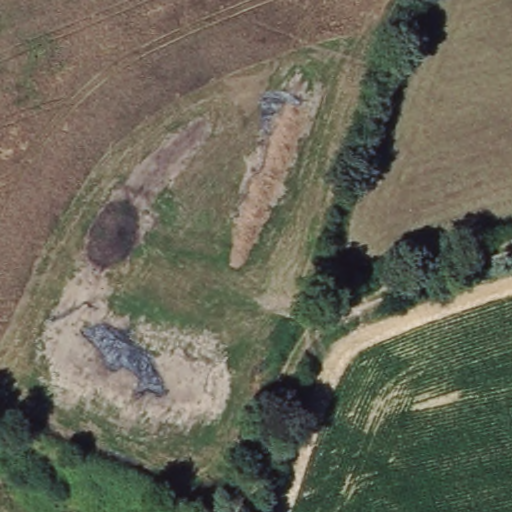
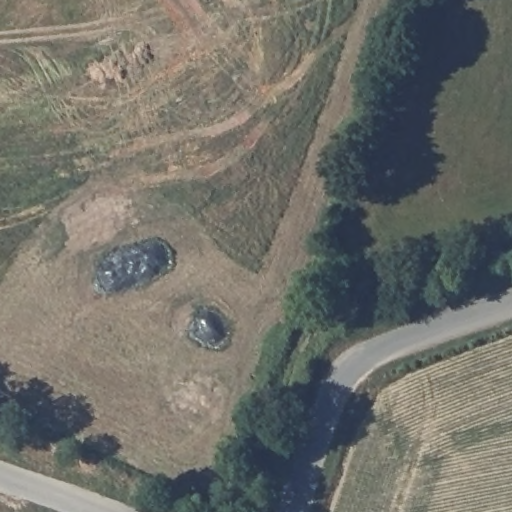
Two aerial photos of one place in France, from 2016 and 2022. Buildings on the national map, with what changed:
[]

